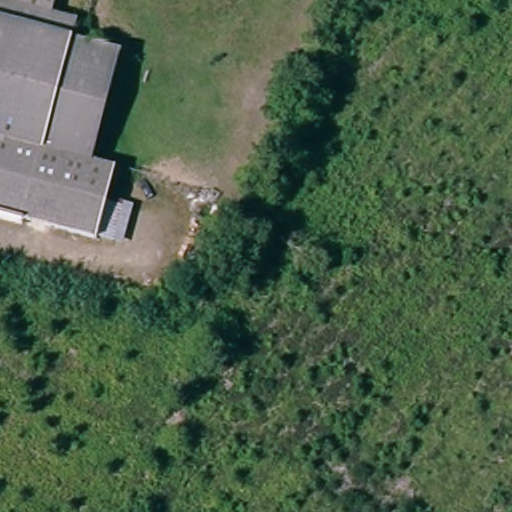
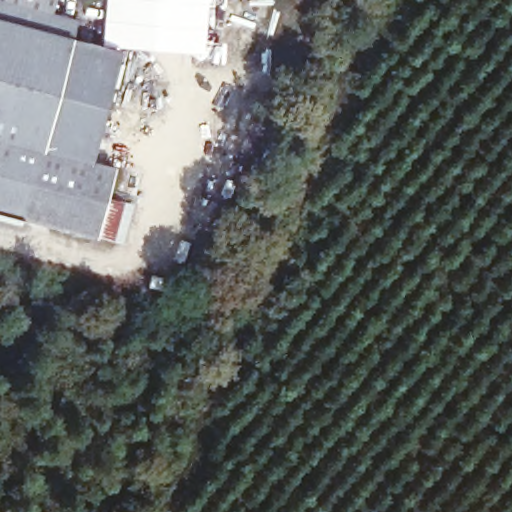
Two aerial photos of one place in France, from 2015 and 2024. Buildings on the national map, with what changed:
unchanged [(1,0),(2,0),(54,0),(52,10),(76,18),(71,37),(120,51),(92,159),(114,166),(107,195),(132,203),(120,246),(0,213),(0,0),(1,0)]
new [(108,0),(208,0),(204,55),(104,45),(108,0)]

